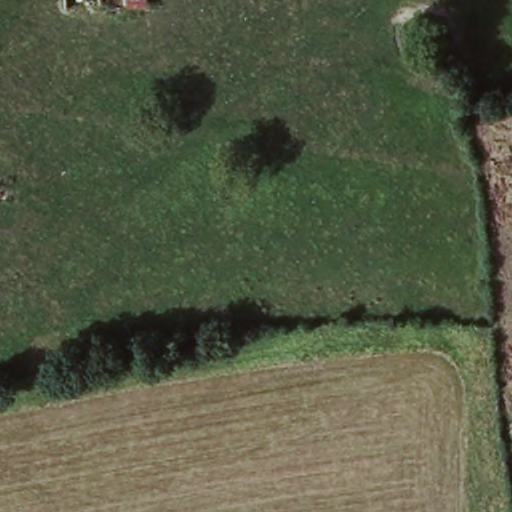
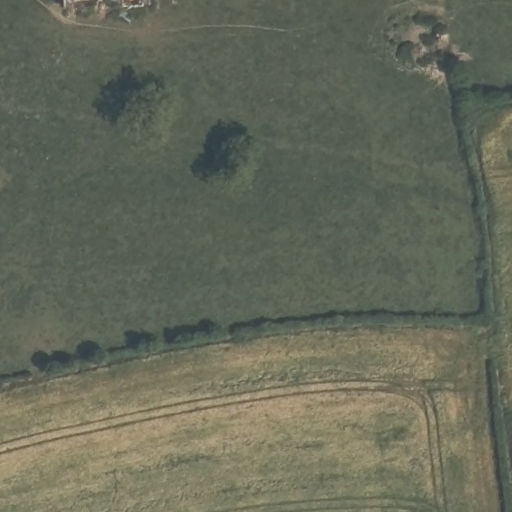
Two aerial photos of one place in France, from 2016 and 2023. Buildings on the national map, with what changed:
unchanged [(67,14),(65,0),(145,0),(145,5),(67,14)]

